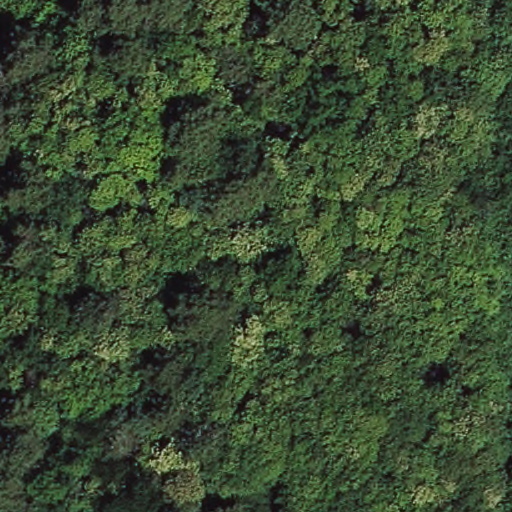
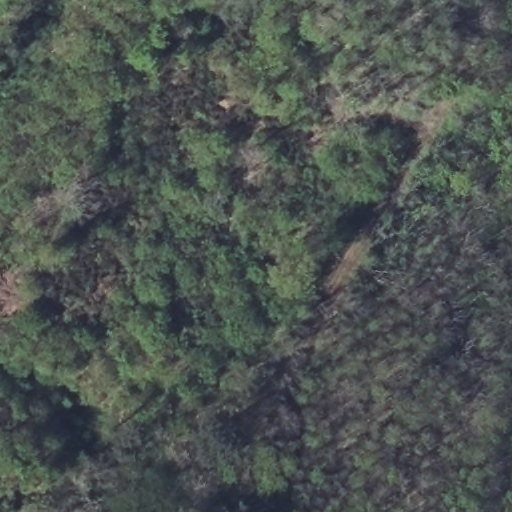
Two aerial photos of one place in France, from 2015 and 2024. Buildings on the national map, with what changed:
[]

